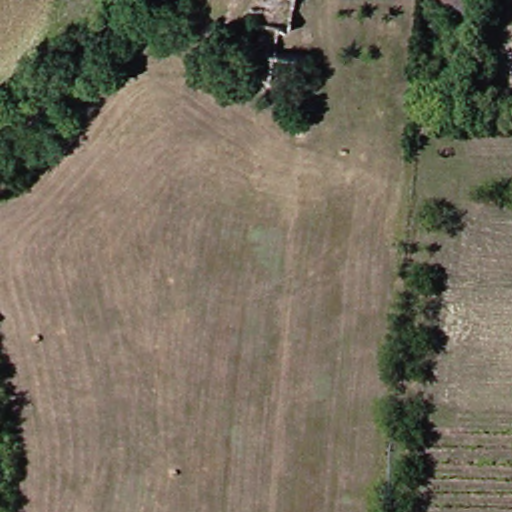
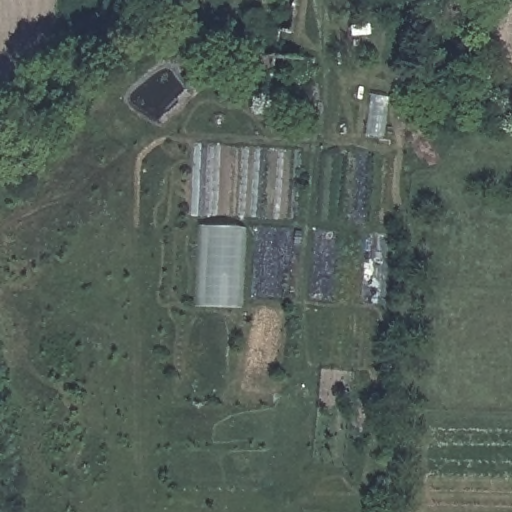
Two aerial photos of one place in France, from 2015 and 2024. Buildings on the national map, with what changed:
unchanged [(427,5),(455,14),(448,32),(424,26),(427,5)]
unchanged [(473,31),(470,74),(455,71),(460,29),(473,31)]
new [(200,227),(245,229),(243,307),(197,306),(200,227)]

